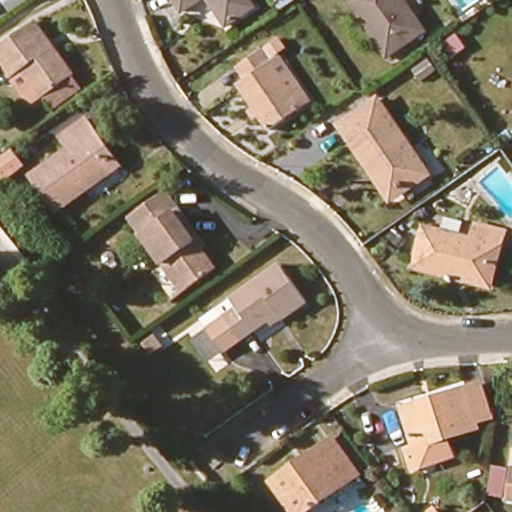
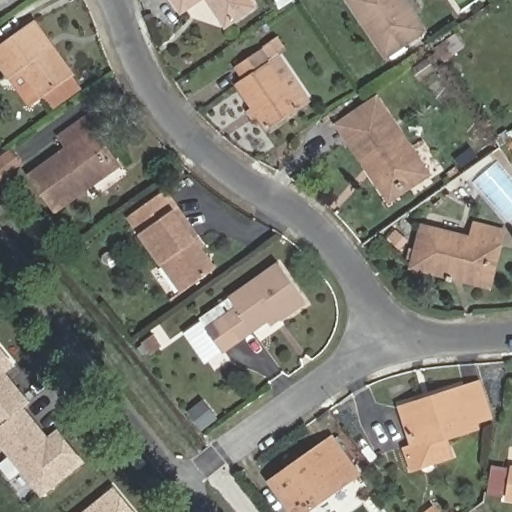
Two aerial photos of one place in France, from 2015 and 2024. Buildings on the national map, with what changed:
unchanged [(170,0),(205,0),(180,16),(170,0)]
unchanged [(225,31),(205,0),(247,0),(255,11),(225,31)]
unchanged [(371,22),(358,0),(405,0),(425,31),(387,56),(367,25),(371,22)]
unchanged [(42,97),(23,70),(11,79),(0,64),(0,46),(34,21),(50,41),(46,44),(49,49),(53,46),(74,75),(82,86),(52,110),(42,97)]
unchanged [(434,46),(442,41),(453,34),(463,48),(452,55),(444,60),(434,46)]
unchanged [(285,35),(291,45),(278,52),(272,43),(285,35)]
unchanged [(242,83),(247,78),(239,65),(268,46),(277,60),(309,106),(273,129),(263,115),(258,107),(242,83)]
unchanged [(427,175),(391,198),(372,170),(367,173),(338,130),(378,101),(427,175)]
unchanged [(67,148),(59,136),(86,117),(96,131),(90,134),(111,164),(83,182),(87,188),(56,212),(29,175),(67,148)]
new [(22,166),(0,183),(0,159),(10,151),(22,166)]
unchanged [(176,209),(202,245),(199,248),(214,269),(184,291),(128,217),(162,191),(176,209)]
unchanged [(477,242),(480,229),(508,235),(505,250),(500,250),(491,283),(463,278),(457,282),(457,288),(451,287),(452,282),(417,273),(427,231),(477,242)]
unchanged [(192,343),(209,332),(212,329),(237,311),(230,300),(279,265),(306,303),(282,321),(281,320),(272,325),(270,321),(224,354),(208,365),(192,343)]
unchanged [(162,348),(151,356),(142,343),(153,335),(162,348)]
new [(50,436),(59,430),(86,463),(42,498),(0,446),(0,347),(17,367),(7,374),(32,403),(25,408),(50,436)]
unchanged [(414,448),(403,414),(433,405),(430,397),(479,382),(490,416),(477,421),(478,427),(447,437),(453,457),(412,470),(405,451),(414,448)]
unchanged [(306,512),(293,512),(271,482),(286,471),(291,478),(307,467),(303,459),(333,437),(360,473),(306,512)]
unchanged [(487,499),(492,467),(510,471),(511,467),(512,467),(512,502),(487,499)]
new [(114,490),(133,512),(88,512),(114,490)]
unchanged [(434,505),(439,512),(424,512),(434,505)]

